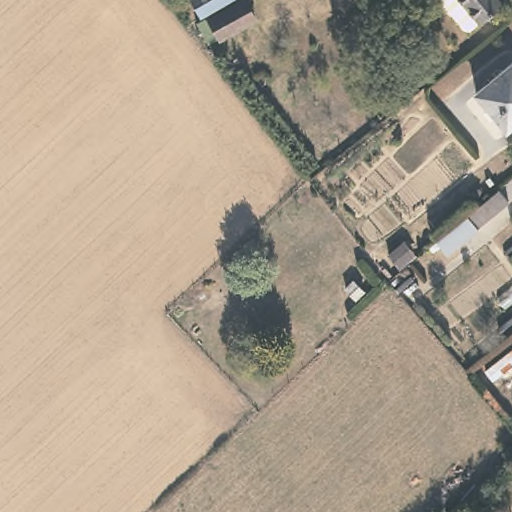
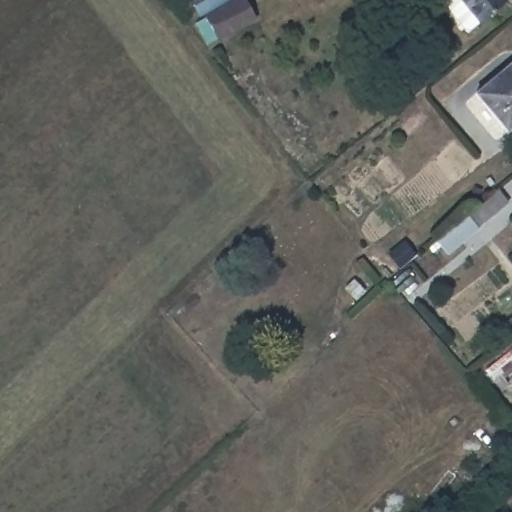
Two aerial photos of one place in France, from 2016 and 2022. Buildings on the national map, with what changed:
unchanged [(187,0),(224,0),(196,16),(187,0)]
unchanged [(232,0),(243,0),(254,19),(217,41),(203,17),(232,0)]
unchanged [(510,2),(470,28),(464,27),(443,0),(508,0),(510,2)]
unchanged [(512,127),(507,131),(474,94),(512,62),(512,127)]
unchanged [(429,233),(474,195),(481,202),(497,191),(508,202),(447,253),(429,233)]
unchanged [(512,369),(496,383),(485,372),(512,350),(512,369)]

